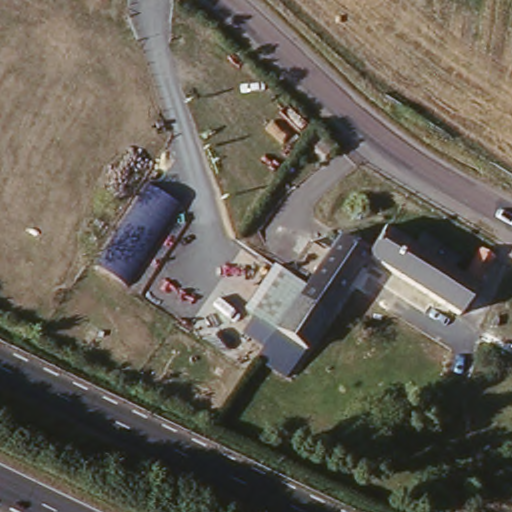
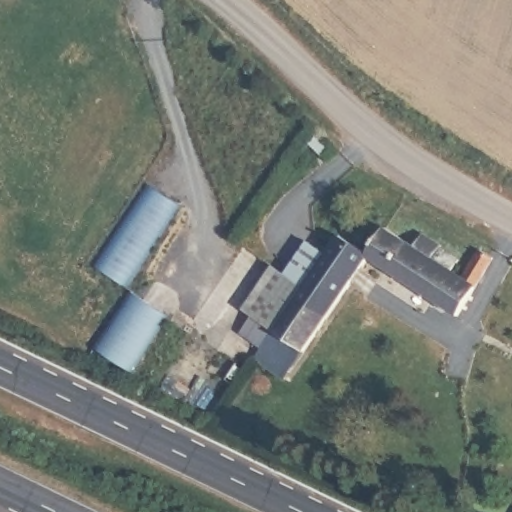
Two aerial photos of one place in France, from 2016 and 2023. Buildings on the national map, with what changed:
unchanged [(96,267),(152,185),(181,204),(124,286),(96,267)]
unchanged [(363,254),(377,227),(412,246),(421,232),(440,243),(438,246),(457,258),(450,270),(465,278),(483,250),(495,257),(458,315),(363,257),(363,254)]
unchanged [(332,235),(363,254),(363,257),(285,381),(251,364),(332,235)]
unchanged [(242,334),(252,317),(244,311),(273,265),(287,273),(307,241),(322,250),(262,346),(242,334)]
new [(167,320),(130,377),(92,354),(131,296),(167,320)]

